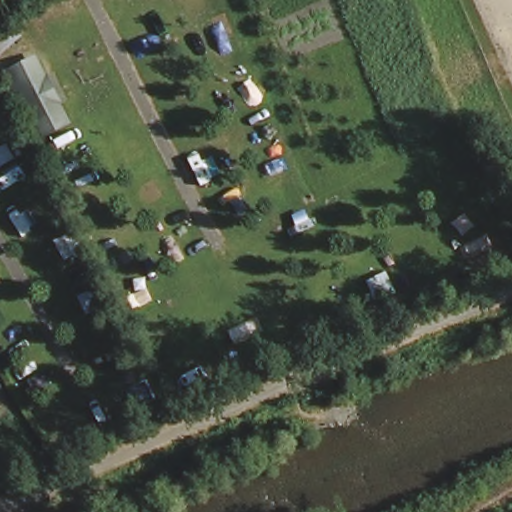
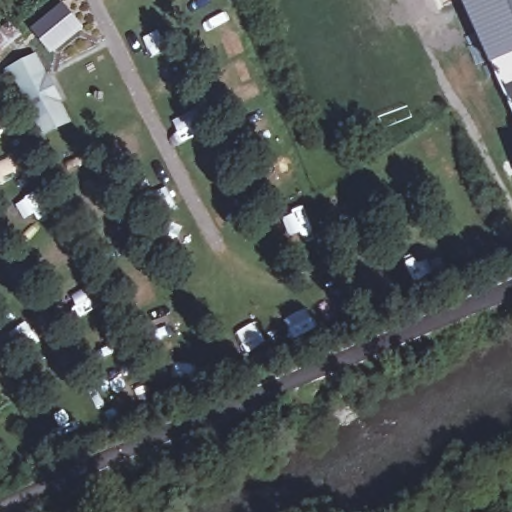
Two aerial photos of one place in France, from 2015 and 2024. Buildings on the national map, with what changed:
new [(495,65),(465,0),(512,0),(512,57),(495,65)]
unchanged [(0,41),(0,21),(10,12),(21,25),(0,41)]
unchanged [(29,51),(43,76),(67,119),(45,132),(32,110),(25,114),(0,67),(29,51)]

